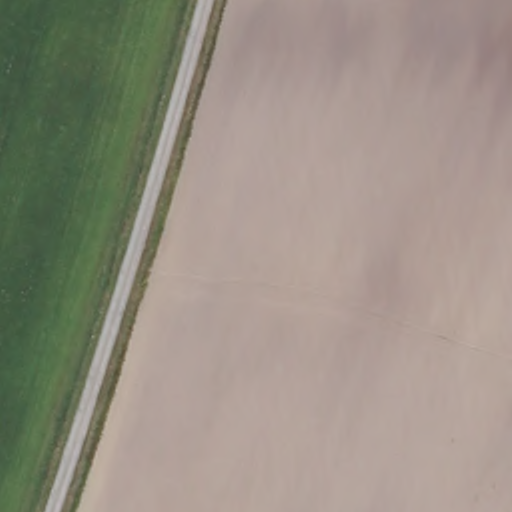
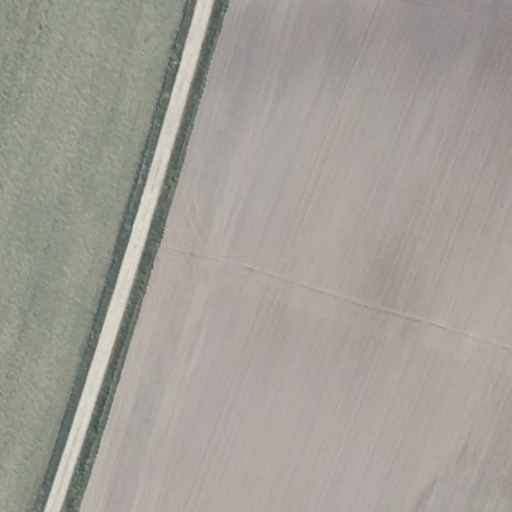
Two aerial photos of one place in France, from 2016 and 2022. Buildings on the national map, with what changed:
[]

